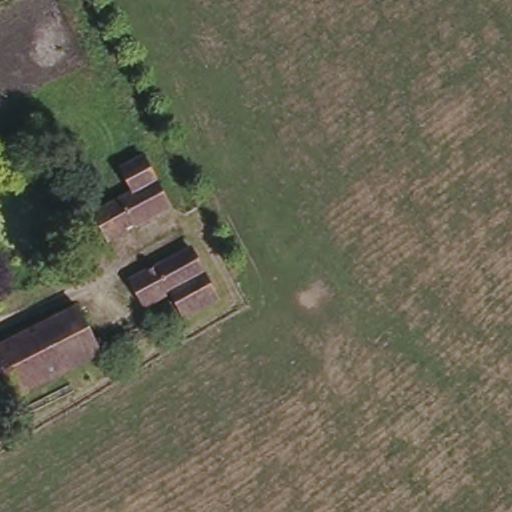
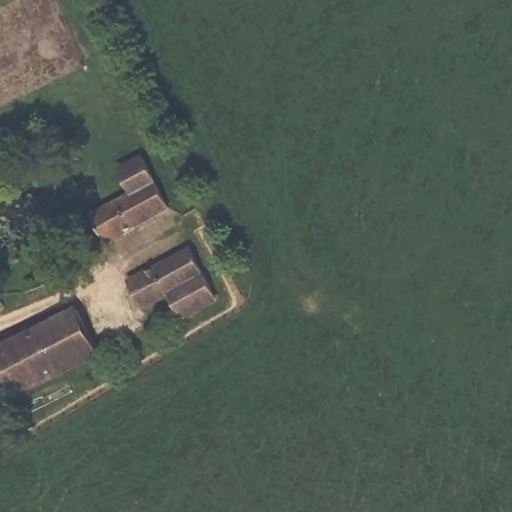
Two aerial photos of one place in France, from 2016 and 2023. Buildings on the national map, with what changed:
unchanged [(72,165),(54,158),(60,142),(80,149),(72,165)]
unchanged [(164,200),(106,232),(93,204),(128,184),(116,163),(140,150),(164,200)]
unchanged [(205,292),(174,310),(161,289),(136,300),(123,274),(182,245),(205,292)]
unchanged [(101,343),(15,384),(0,352),(0,338),(77,298),(101,343)]

